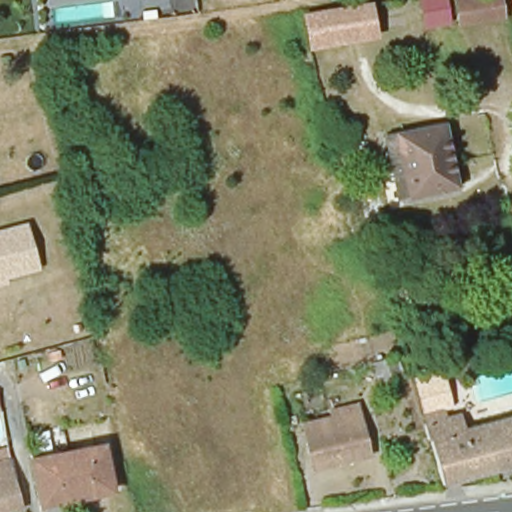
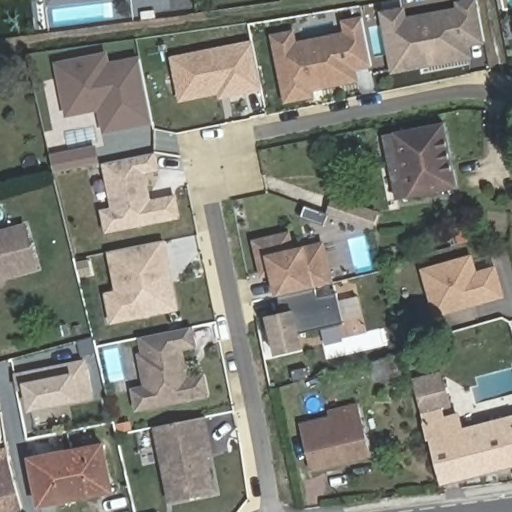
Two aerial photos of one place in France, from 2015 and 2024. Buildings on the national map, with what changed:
demolished [(451,24),(429,28),(425,0),(447,0),(451,24)]
demolished [(506,16),(464,22),(460,0),(504,0),(506,16)]
new [(393,72),(386,32),(383,15),(401,12),(404,29),(403,22),(459,11),(458,5),(477,2),(482,32),(484,43),(467,46),(465,36),(469,58),(432,65),(420,67),(393,72)]
demolished [(371,5),(377,36),(312,48),(305,17),(371,5)]
new [(354,70),(357,81),(312,90),(313,97),(286,102),(272,37),(293,33),(295,44),(346,34),(343,22),(362,19),(372,66),(354,70)]
new [(220,93),(181,101),(173,60),(253,43),(263,90),(229,96),(221,98),(220,93)]
new [(106,132),(102,108),(69,115),(59,66),(106,56),(108,67),(141,60),(154,122),(106,132)]
unchanged [(378,138),(389,136),(448,125),(462,188),(402,199),(391,201),(389,191),(380,149),(378,138)]
new [(102,164),(57,173),(53,157),(98,147),(102,164)]
new [(155,153),(158,169),(145,172),(151,202),(176,197),(180,217),(107,231),(103,211),(114,209),(105,163),(155,153)]
new [(335,197),(378,212),(373,227),(329,212),(335,197)]
unchanged [(25,227),(37,274),(0,284),(0,233),(25,227)]
new [(292,251),(323,244),(332,284),(278,296),(273,274),(262,276),(254,241),(288,233),(292,251)]
new [(110,251),(164,241),(167,257),(158,258),(163,283),(172,281),(177,309),(123,320),(113,322),(107,294),(118,292),(110,251)]
new [(477,271),(496,265),(506,298),(434,319),(420,269),(472,254),(477,271)]
new [(315,288),(317,297),(336,293),(343,324),(298,335),(302,350),(276,356),(267,317),(282,313),(278,296),(315,288)]
new [(195,346),(181,349),(187,379),(204,376),(208,395),(137,409),(134,390),(146,387),(140,355),(144,354),(141,337),(192,327),(195,346)]
new [(29,413),(23,384),(16,385),(13,373),(86,358),(94,398),(29,413)]
unchanged [(439,376),(449,409),(441,411),(443,420),(423,425),(421,416),(413,384),(439,376)]
unchanged [(371,454),(314,468),(304,424),(332,417),(330,410),(359,404),(371,454)]
new [(213,456),(207,457),(205,450),(214,492),(170,501),(155,426),(205,416),(211,448),(213,456)]
unchanged [(431,439),(427,440),(423,425),(443,420),(458,417),(461,431),(512,419),(512,467),(443,484),(431,439)]
unchanged [(101,445),(110,490),(40,505),(30,460),(101,445)]
unchanged [(8,459),(21,508),(9,512),(0,512),(0,462),(8,459)]

